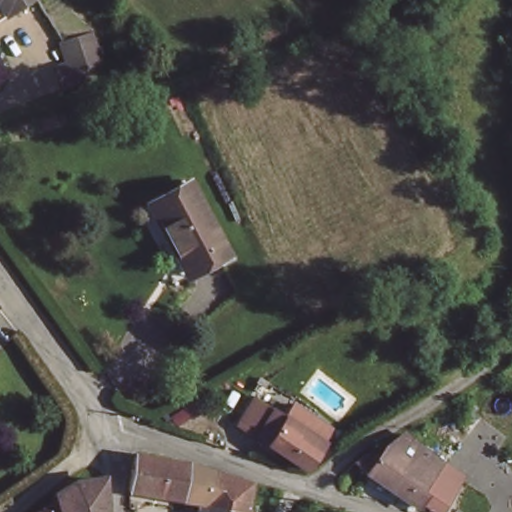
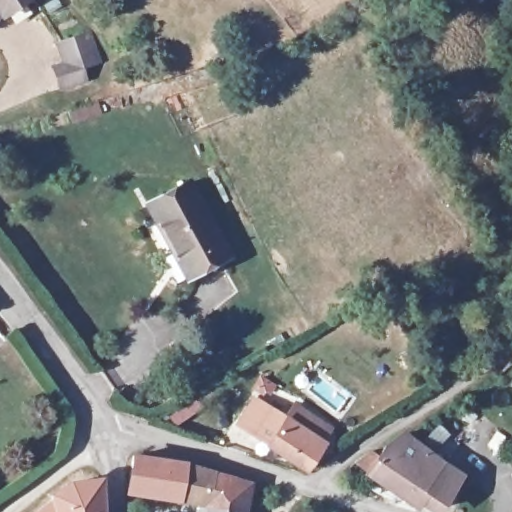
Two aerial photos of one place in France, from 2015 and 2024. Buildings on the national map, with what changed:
unchanged [(0,0),(28,0),(0,20),(0,0)]
unchanged [(78,48),(106,39),(111,55),(91,62),(99,85),(76,92),(68,70),(84,64),(78,48)]
unchanged [(191,274),(178,248),(172,252),(151,206),(194,185),(227,256),(191,274)]
unchanged [(308,478),(234,422),(252,398),(278,418),(289,404),(311,420),(331,434),(322,444),(329,448),(308,478)]
unchanged [(440,507),(429,499),(422,495),(412,508),(352,465),(365,456),(375,464),(392,441),(404,436),(451,468),(461,474),(440,507)]
unchanged [(137,457),(194,467),(251,484),(246,512),(205,512),(207,504),(131,492),(137,457)]
unchanged [(70,486),(81,480),(99,479),(102,484),(104,512),(42,512),(70,486)]

